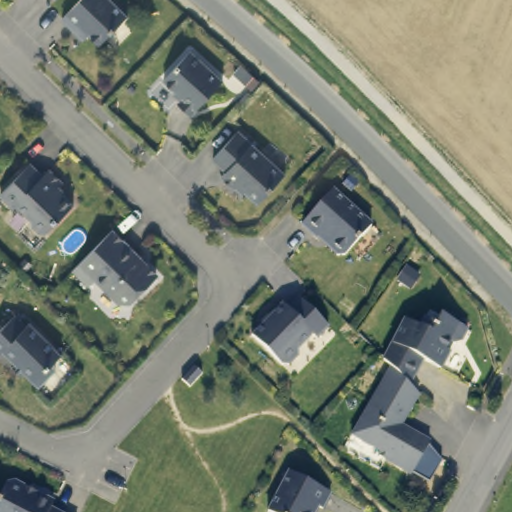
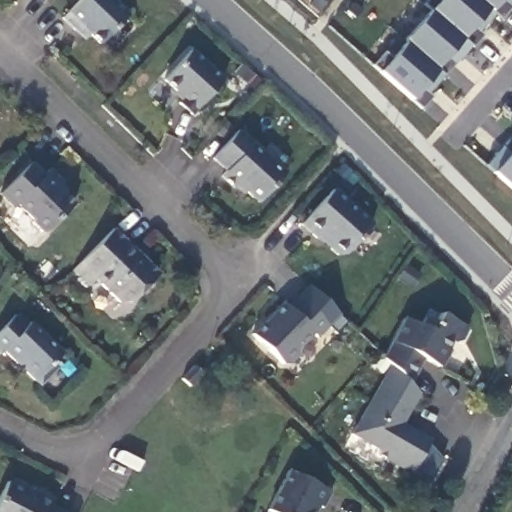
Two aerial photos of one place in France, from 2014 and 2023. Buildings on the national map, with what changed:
unchanged [(105,44),(94,34),(90,38),(81,29),(80,31),(67,19),(85,0),(115,0),(131,15),(105,44)]
new [(378,73),(404,44),(401,41),(437,0),(512,0),(512,4),(503,18),(496,13),(481,33),(485,35),(473,50),(468,46),(422,108),(412,100),(378,73)]
unchanged [(222,80),(191,116),(177,104),(182,98),(165,78),(189,51),(222,80)]
unchanged [(283,173),(257,202),(239,185),(236,189),(221,175),(225,170),(214,157),(237,131),(283,173)]
new [(492,171),(512,149),(512,188),(492,171)]
unchanged [(46,232),(33,220),(34,219),(18,203),(14,207),(1,194),(31,163),(44,175),(50,169),(64,183),(58,189),(73,204),(46,232)]
unchanged [(371,225),(343,256),(336,255),(330,249),(328,241),(320,234),(317,238),(303,224),(333,191),(371,225)]
unchanged [(145,258),(142,260),(160,278),(134,304),(121,302),(100,279),(92,287),(75,270),(116,229),(145,258)]
unchanged [(330,326),(318,338),(314,335),(301,348),(301,355),(291,366),(284,364),(255,336),(285,305),(289,309),(301,298),(330,326)]
unchanged [(403,309),(417,318),(422,309),(431,314),(436,305),(464,321),(456,334),(452,334),(448,332),(444,339),(447,341),(437,359),(421,349),(406,374),(405,373),(389,357),(381,349),(403,309)]
unchanged [(48,361),(51,364),(34,382),(0,349),(0,324),(11,312),(23,324),(26,320),(57,351),(48,361)]
unchanged [(187,378),(176,369),(189,354),(200,363),(187,378)]
unchanged [(400,421),(408,426),(410,423),(428,433),(410,466),(376,447),(379,443),(349,426),(389,357),(405,373),(406,374),(415,384),(400,421)]
unchanged [(326,490),(318,506),(313,504),(308,512),(269,512),(265,509),(285,469),(326,490)]
unchanged [(0,486),(3,480),(10,478),(21,484),(24,490),(31,494),(33,490),(50,499),(46,504),(60,512),(0,512),(0,486)]

